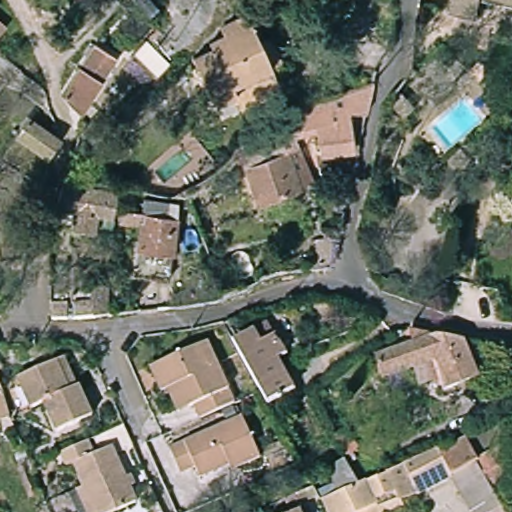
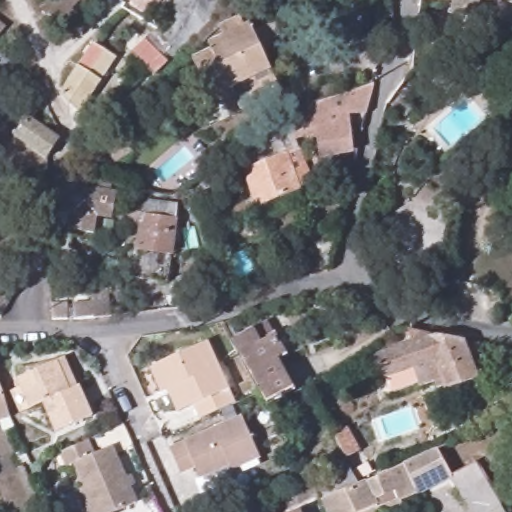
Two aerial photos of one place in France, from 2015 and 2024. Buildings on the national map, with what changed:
unchanged [(155,17),(141,0),(159,0),(166,8),(155,17)]
unchanged [(449,0),(477,0),(474,17),(447,11),(449,0)]
unchanged [(495,0),(512,0),(512,4),(495,0)]
unchanged [(235,118),(229,106),(211,114),(187,66),(206,56),(203,49),(217,42),(213,35),(231,27),(236,35),(243,32),(253,50),(265,45),(278,71),(266,77),(276,99),(235,118)]
unchanged [(92,40),(116,55),(81,110),(57,93),(92,40)]
unchanged [(144,52),(166,74),(158,83),(135,61),(144,52)]
unchanged [(13,80),(2,95),(0,93),(0,71),(8,77),(13,80)]
unchanged [(318,101),(334,96),(357,90),(371,85),(371,101),(366,119),(349,119),(354,157),(320,161),(317,140),(294,145),(285,111),(318,101)]
unchanged [(39,156),(19,144),(5,135),(18,116),(50,137),(39,156)]
unchanged [(255,161),(253,153),(272,145),(271,144),(274,142),(278,151),(283,149),(286,158),(298,154),(311,187),(301,192),(301,194),(258,211),(241,167),(255,161)]
unchanged [(113,193),(110,219),(98,216),(94,234),(69,230),(71,212),(52,209),(57,183),(113,193)]
unchanged [(206,195),(218,234),(208,236),(198,201),(206,195)]
unchanged [(120,210),(141,214),(143,198),(178,203),(169,281),(135,275),(141,225),(119,221),(120,210)]
unchanged [(317,250),(342,249),(335,278),(317,282),(317,250)]
unchanged [(94,295),(104,294),(110,293),(113,321),(96,322),(94,295)]
unchanged [(76,308),(90,307),(93,323),(78,324),(76,308)]
unchanged [(63,309),(69,308),(70,322),(57,321),(56,310),(63,309)]
unchanged [(267,325),(285,357),(275,362),(292,394),(265,408),(229,345),(267,325)]
unchanged [(465,343),(482,348),(484,360),(474,363),(481,378),(478,380),(448,391),(443,381),(425,386),(419,370),(382,382),(375,360),(411,348),(405,335),(404,331),(465,343)]
unchanged [(168,388),(161,391),(151,365),(206,339),(237,402),(202,417),(196,405),(191,406),(179,412),(168,388)]
unchanged [(58,432),(43,401),(35,405),(23,377),(52,362),(64,357),(78,386),(93,417),(58,432)]
unchanged [(13,417),(0,421),(0,378),(5,395),(13,417)]
unchanged [(202,461),(200,457),(184,464),(177,447),(247,415),(262,450),(236,462),(233,457),(206,470),(202,461)]
unchanged [(343,458),(330,436),(344,429),(356,451),(343,458)]
unchanged [(336,494),(324,471),(341,460),(356,486),(380,477),(398,468),(413,460),(434,450),(464,437),(474,457),(499,507),(492,512),(468,512),(448,478),(414,495),(398,502),(400,507),(386,512),(318,512),(313,503),(336,494)]
unchanged [(83,493),(90,490),(78,464),(71,467),(64,453),(94,441),(100,454),(115,447),(141,503),(122,512),(92,512),(83,493)]
unchanged [(298,510),(299,512),(309,507),(310,512),(293,512),(298,510)]

